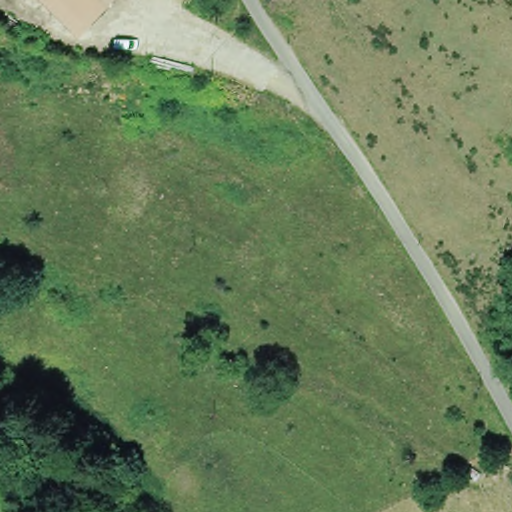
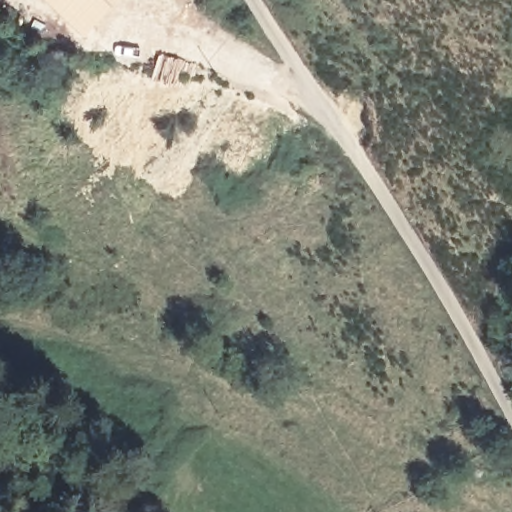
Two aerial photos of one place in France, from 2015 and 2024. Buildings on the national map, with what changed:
unchanged [(61,0),(116,0),(92,27),(61,0)]

